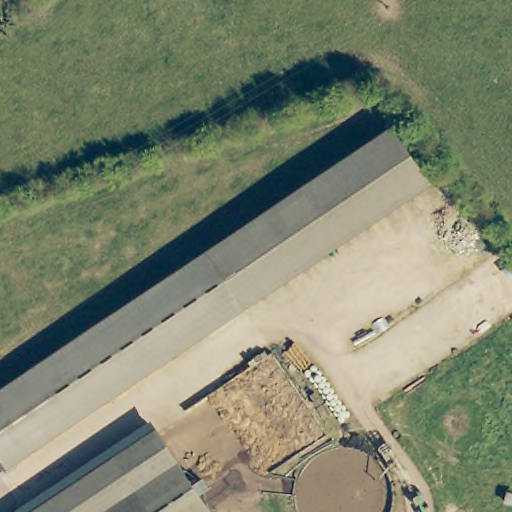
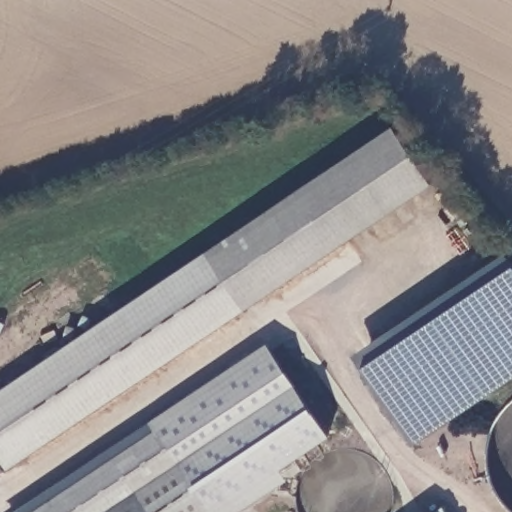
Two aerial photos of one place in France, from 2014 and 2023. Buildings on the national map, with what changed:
unchanged [(201,260),(394,128),(433,185),(241,317),(201,260)]
new [(512,379),(415,443),(363,367),(354,355),(505,254),(512,264),(512,379)]
unchanged [(7,474),(0,464),(0,399),(201,260),(241,317),(7,474)]
new [(281,469),(287,480),(241,512),(212,512),(168,447),(161,437),(115,468),(106,472),(49,512),(16,512),(266,343),(329,437),(281,469)]
unchanged [(212,512),(146,512),(135,497),(115,468),(161,437),(212,512)]
unchanged [(114,466),(115,468),(135,497),(146,512),(49,512),(114,466)]

